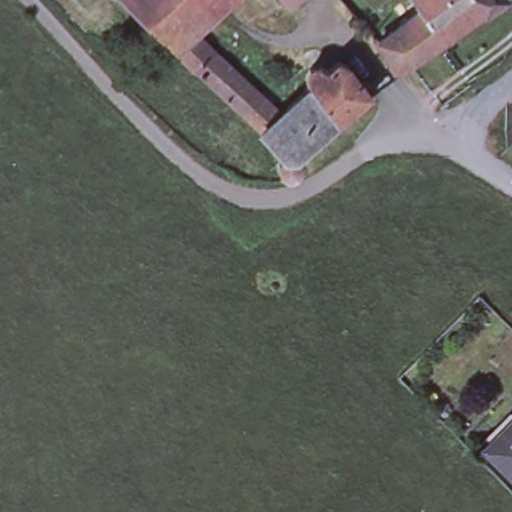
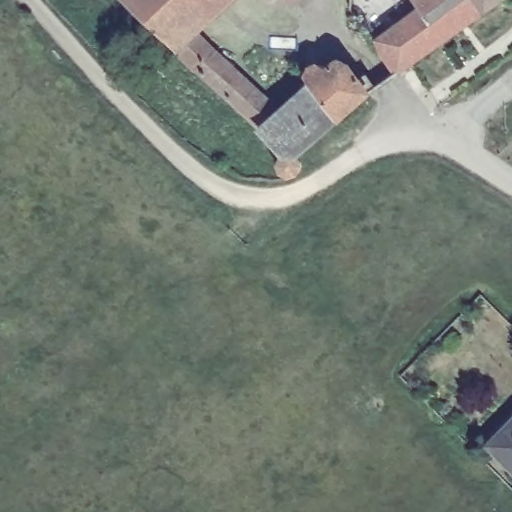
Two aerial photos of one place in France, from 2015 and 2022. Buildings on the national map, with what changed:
unchanged [(193,63),(175,46),(126,0),(225,0),(191,31),(209,50),(213,47),(259,95),(243,109),(193,63)]
unchanged [(291,3),(287,0),(294,0),(291,3)]
unchanged [(422,13),(412,0),(478,0),(488,14),(444,44),(422,13)]
unchanged [(488,14),(478,0),(507,0),(488,14)]
unchanged [(398,76),(384,57),(380,44),(422,13),(444,44),(398,76)]
unchanged [(299,166),(291,171),(281,169),(276,161),(281,152),(261,126),(243,109),(259,95),(275,111),(303,88),(309,78),(306,73),(311,62),(321,59),(329,63),(341,53),(349,63),(351,60),(368,88),(298,152),(301,159),(299,166)]
unchanged [(512,427),(512,470),(491,448),(512,427)]

